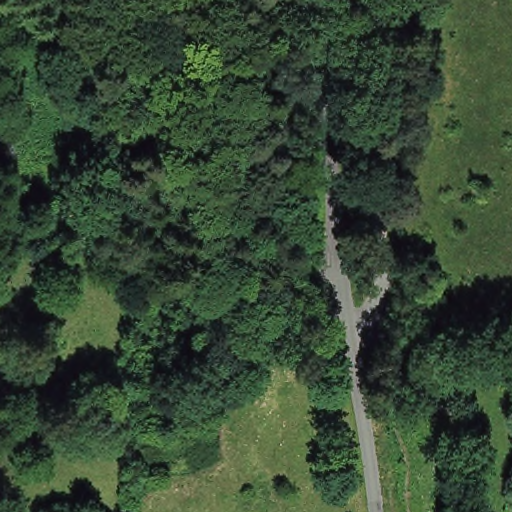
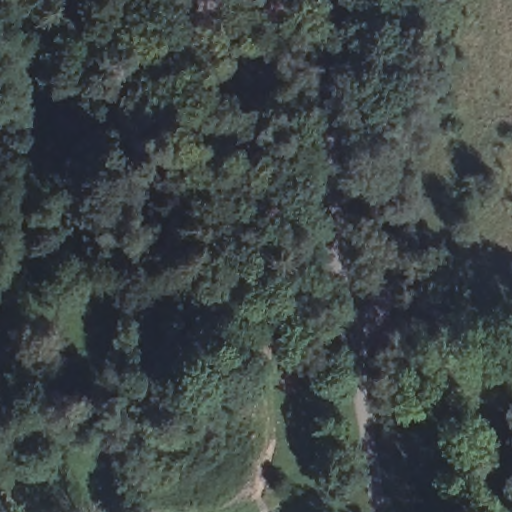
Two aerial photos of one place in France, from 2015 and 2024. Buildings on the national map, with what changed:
[]

